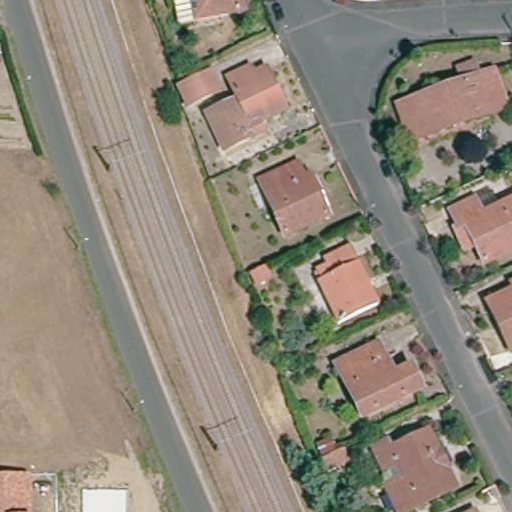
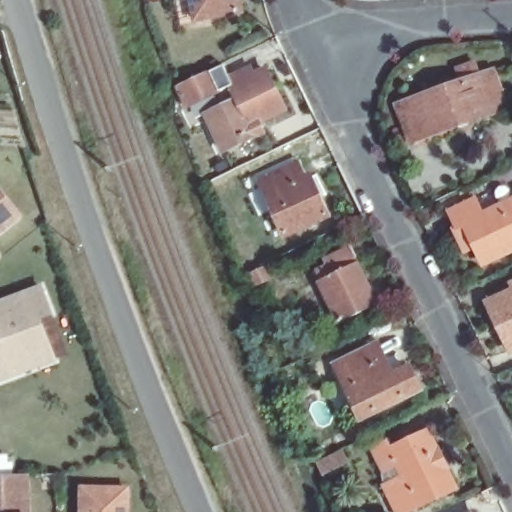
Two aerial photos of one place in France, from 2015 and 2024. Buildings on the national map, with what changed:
unchanged [(214,22),(212,11),(190,12),(188,0),(242,0),(246,17),(214,22)]
unchanged [(209,118),(234,105),(240,119),(246,115),(229,80),(249,69),(253,77),(266,71),(285,108),(258,122),(263,134),(224,152),(209,118)]
unchanged [(502,114),(411,146),(400,110),(461,87),(457,75),(472,69),(477,82),(489,78),(502,114)]
unchanged [(212,74),(222,93),(191,109),(181,89),(212,74)]
unchanged [(308,181),(313,179),(331,216),(289,235),(263,183),(301,165),(308,181)]
new [(20,217),(0,233),(0,193),(20,217)]
unchanged [(483,212),(512,198),(512,244),(483,258),(465,221),(457,224),(449,206),(474,194),(483,212)]
unchanged [(326,257),(351,246),(380,305),(340,323),(321,280),(333,273),(326,257)]
new [(55,317),(42,321),(59,362),(0,386),(0,342),(2,342),(0,336),(0,300),(43,283),(55,317)]
unchanged [(512,344),(492,302),(512,292),(512,344)]
unchanged [(378,345),(394,379),(410,371),(417,390),(363,417),(337,364),(378,345)]
unchanged [(457,491),(421,507),(400,465),(384,472),(375,452),(390,443),(393,451),(431,432),(457,491)]
unchanged [(344,451),(349,462),(325,473),(320,462),(344,451)]
unchanged [(31,512),(0,512),(0,475),(29,473),(31,512)]
new [(131,486),(130,512),(80,512),(80,486),(131,486)]
unchanged [(473,512),(468,512),(473,510),(473,512)]

